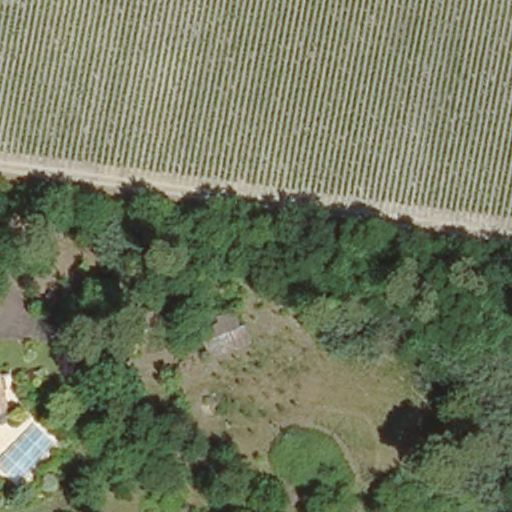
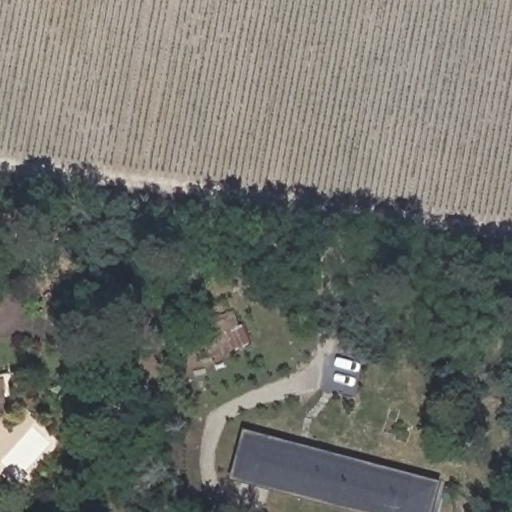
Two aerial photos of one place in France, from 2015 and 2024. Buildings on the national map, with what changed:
unchanged [(0,409),(0,393),(3,408),(0,409)]
new [(432,512),(368,512),(232,476),(243,429),(439,482),(432,512)]

